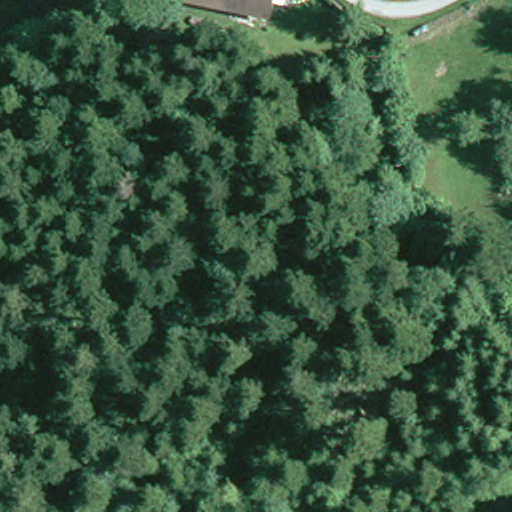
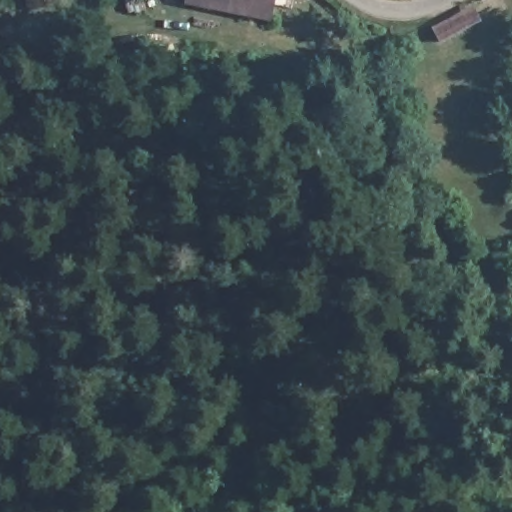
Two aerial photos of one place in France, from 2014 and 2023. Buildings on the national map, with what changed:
unchanged [(272,12),(193,3),(193,0),(274,0),(272,12)]

